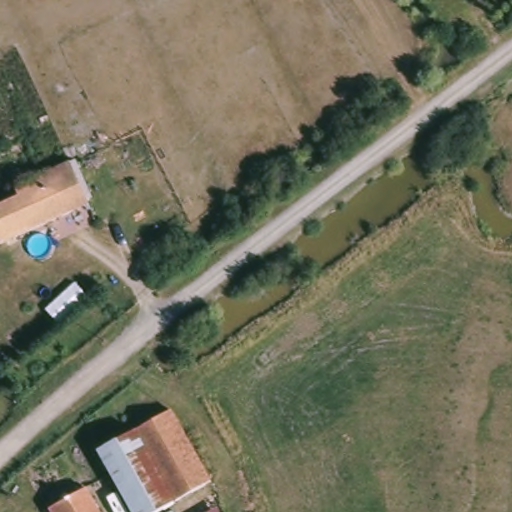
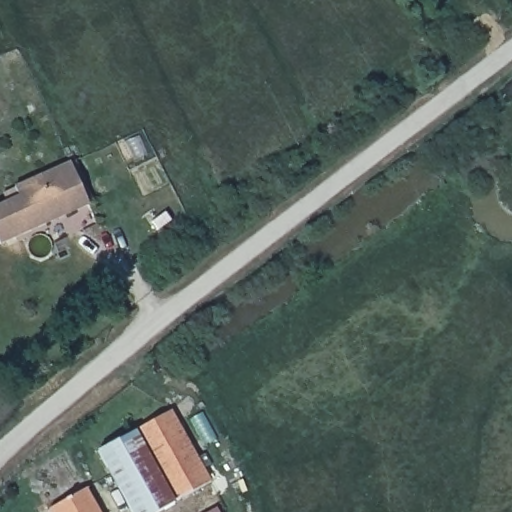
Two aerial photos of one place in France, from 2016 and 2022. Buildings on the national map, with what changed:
unchanged [(0,248),(0,211),(41,192),(35,178),(69,162),(90,205),(0,249),(0,248)]
unchanged [(137,432),(179,414),(216,489),(177,508),(137,432)]
unchanged [(167,512),(128,512),(97,449),(137,432),(177,508),(167,512)]
unchanged [(54,507),(90,489),(101,512),(56,512),(54,507)]

